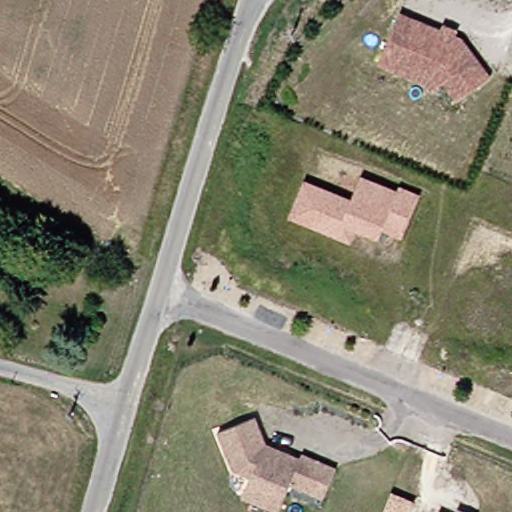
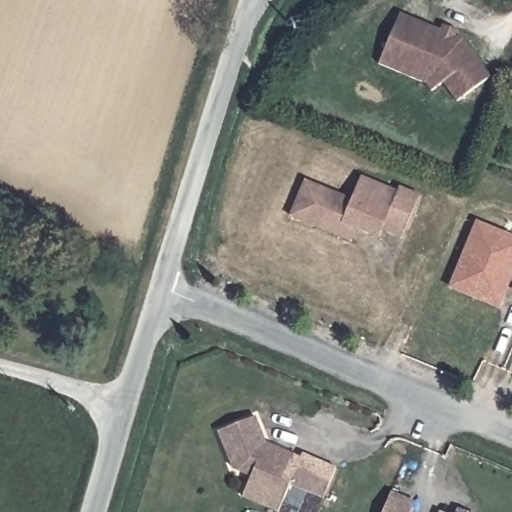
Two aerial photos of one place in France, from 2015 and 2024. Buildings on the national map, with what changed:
unchanged [(395,66),(378,58),(400,14),(402,9),(418,16),(442,29),(445,23),(458,30),(455,35),(462,39),(490,76),(458,101),(441,79),(430,88),(424,80),(395,66)]
unchanged [(336,238),(289,218),(303,183),(350,202),(352,195),(360,179),(378,187),(396,194),(398,189),(418,198),(400,239),(381,230),(377,239),(355,230),(352,237),(350,244),(336,238)]
new [(502,297),(499,305),(477,296),(452,285),(478,222),(512,236),(512,279),(510,278),(502,297)]
unchanged [(275,510),(239,494),(240,491),(245,481),(247,474),(230,466),(214,428),(250,414),(262,441),(296,456),(298,452),(332,467),(320,497),(286,482),(280,496),(276,508),(275,510)]
new [(388,496),(413,505),(410,512),(382,512),(388,496)]
unchanged [(457,508),(466,512),(455,512),(457,508)]
unchanged [(438,511),(442,512),(438,512),(438,511)]

